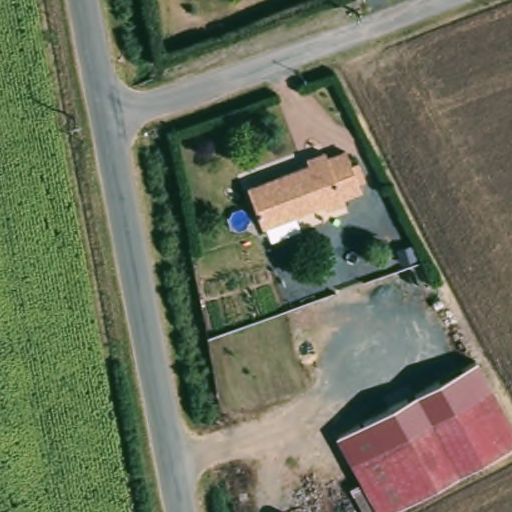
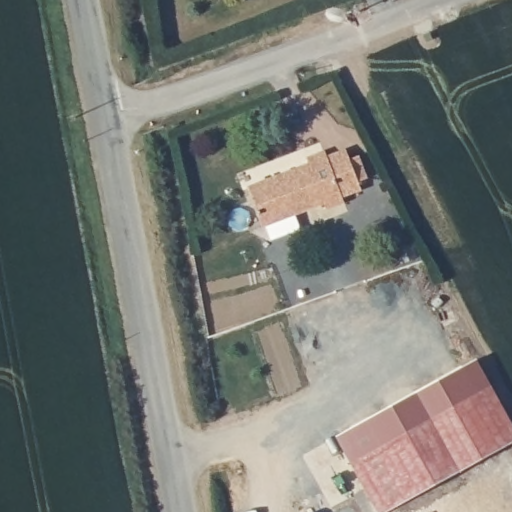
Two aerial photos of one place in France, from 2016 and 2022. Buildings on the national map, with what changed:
unchanged [(363,186),(263,228),(247,185),(313,161),(312,154),(328,149),(331,152),(348,144),(363,186)]
unchanged [(475,359),(488,386),(467,400),(353,467),(339,441),(475,359)]
unchanged [(512,435),(512,445),(499,452),(467,400),(488,386),(512,435)]
unchanged [(353,467),(467,400),(499,452),(479,463),(397,512),(378,512),(368,495),(353,467)]

